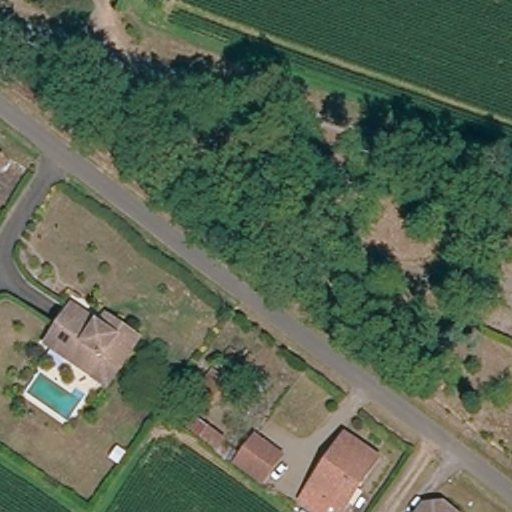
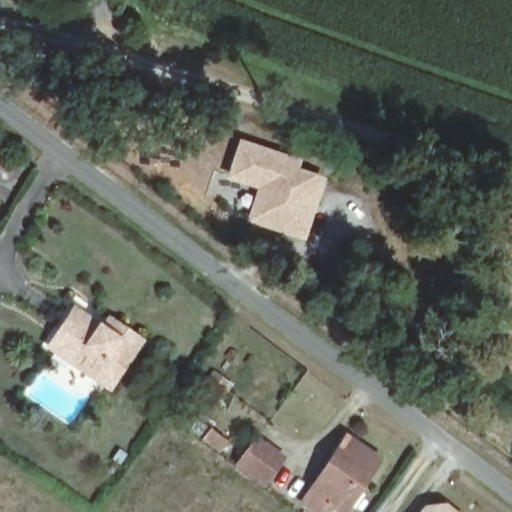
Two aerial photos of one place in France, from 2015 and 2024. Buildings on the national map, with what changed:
new [(301,160),(298,168),(325,176),(305,241),(245,221),(256,189),(225,179),(239,139),(301,160)]
unchanged [(110,320),(123,329),(142,342),(109,390),(50,350),(76,311),(103,330),(110,320)]
unchanged [(235,390),(220,412),(201,398),(216,377),(235,390)]
unchanged [(280,455),(261,481),(232,460),(251,434),(280,455)]
unchanged [(339,512),(334,512),(325,506),(321,512),(310,512),(295,501),(344,435),(377,460),(339,512)]
unchanged [(453,512),(444,512),(451,510),(453,512)]

